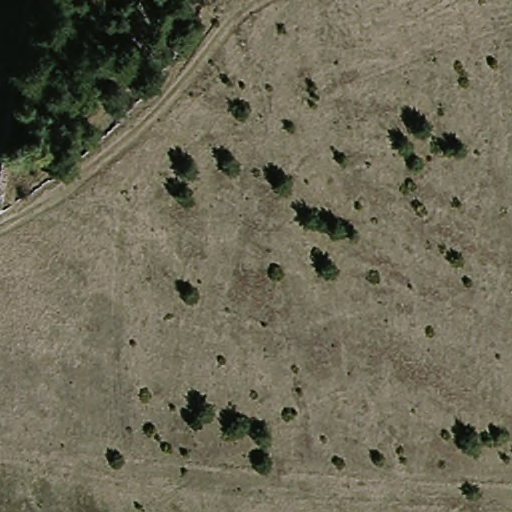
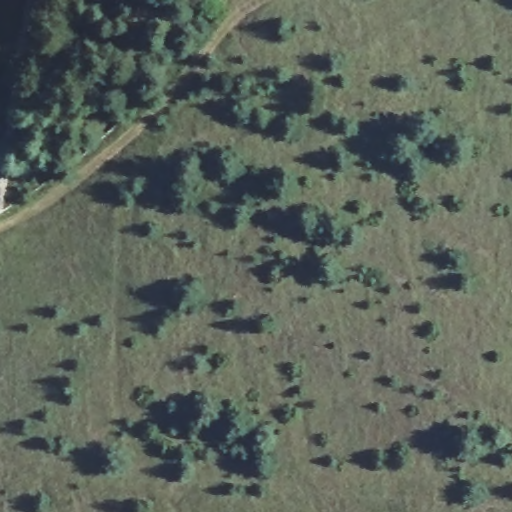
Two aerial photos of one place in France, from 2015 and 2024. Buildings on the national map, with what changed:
[]

